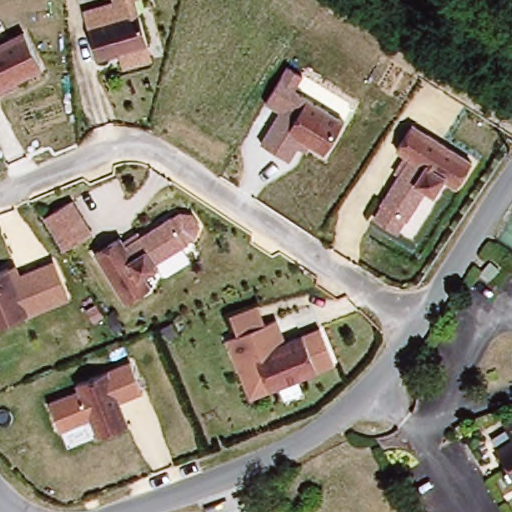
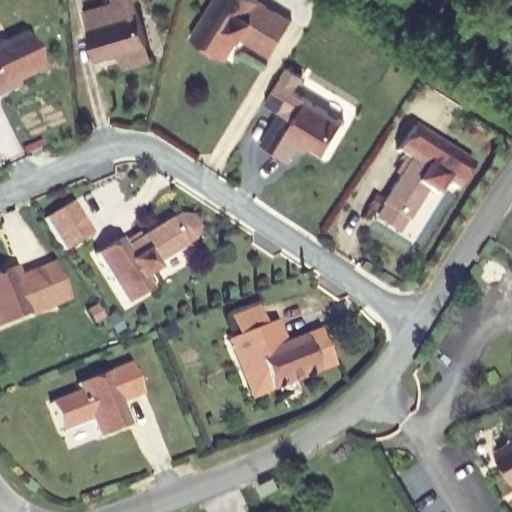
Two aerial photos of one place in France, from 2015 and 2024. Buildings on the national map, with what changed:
unchanged [(115,56),(95,63),(78,10),(102,0),(141,0),(155,61),(119,74),(115,56)]
new [(238,39),(236,37),(223,59),(188,36),(209,0),(257,0),(289,22),(274,47),(268,57),(239,37),(238,39)]
unchanged [(20,34),(39,77),(0,95),(0,43),(20,34)]
unchanged [(274,111),(264,101),(289,64),(308,77),(299,90),(346,117),(326,149),(314,140),(297,165),(258,139),(274,111)]
unchanged [(407,157),(397,148),(414,125),(477,162),(461,190),(452,184),(443,198),(431,191),(403,238),(371,215),(407,157)]
unchanged [(63,252),(45,220),(72,204),(91,237),(63,252)]
unchanged [(125,246),(172,220),(187,246),(153,265),(156,270),(143,277),(150,289),(123,304),(94,253),(120,238),(125,246)]
unchanged [(18,279),(42,270),(54,265),(67,301),(55,306),(0,326),(0,273),(14,267),(18,279)]
unchanged [(240,383),(224,339),(237,335),(230,316),(256,306),(263,325),(274,321),(283,345),(317,332),(328,371),(262,394),(244,400),(240,383)]
unchanged [(91,419),(60,430),(50,401),(80,391),(78,382),(133,364),(143,395),(120,403),(128,427),(98,438),(91,419)]
unchanged [(508,450),(501,438),(512,431),(512,488),(494,458),(508,450)]

